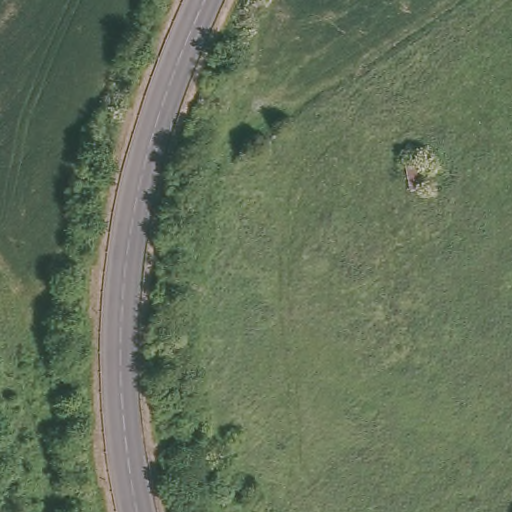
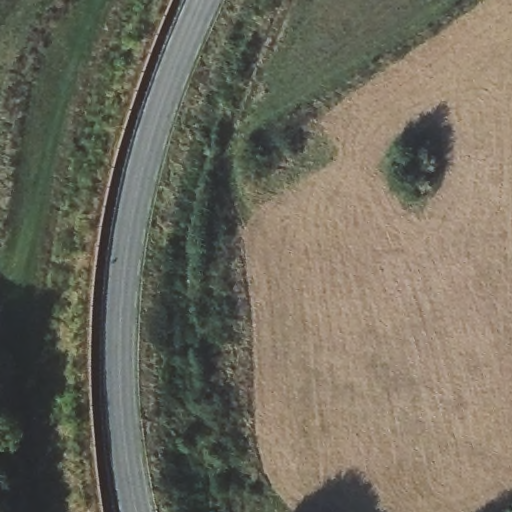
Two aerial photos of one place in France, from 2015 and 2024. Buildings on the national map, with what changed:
unchanged [(402,167),(419,165),(427,196),(409,200),(402,167)]

